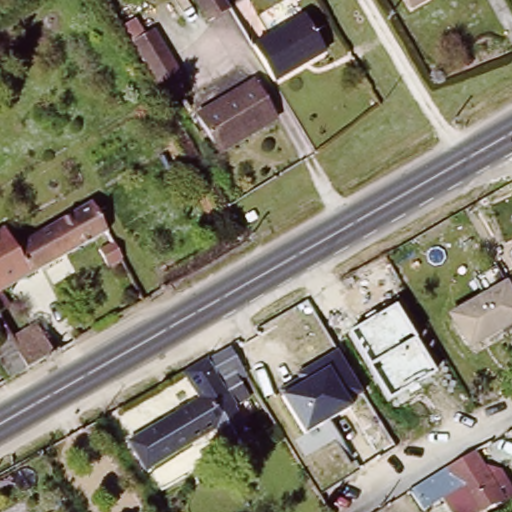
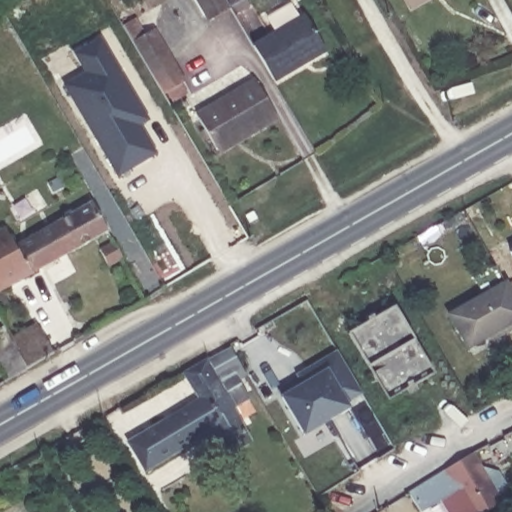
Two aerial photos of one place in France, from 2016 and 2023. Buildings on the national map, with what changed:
unchanged [(207,25),(191,0),(220,0),(228,13),(207,25)]
unchanged [(400,0),(428,0),(407,12),(400,0)]
unchanged [(322,54),(271,84),(250,49),(302,19),(322,54)]
unchanged [(117,30),(132,20),(140,32),(152,28),(183,81),(160,99),(117,30)]
new [(101,36),(149,120),(140,127),(157,154),(118,176),(64,84),(84,72),(74,53),(101,36)]
unchanged [(210,151),(191,119),(249,85),(272,122),(233,145),(213,157),(210,151)]
unchanged [(0,290),(0,243),(5,251),(82,208),(97,236),(0,290)]
unchanged [(122,258),(107,266),(98,250),(113,242),(122,258)]
unchanged [(507,249),(512,245),(512,257),(507,249)]
unchanged [(512,306),(512,317),(463,346),(445,314),(499,283),(512,306)]
unchanged [(395,306),(435,374),(388,400),(349,333),(395,306)]
unchanged [(48,353),(22,368),(5,379),(0,371),(0,330),(6,340),(32,325),(48,353)]
unchanged [(236,371),(227,376),(242,402),(227,411),(254,457),(241,464),(234,453),(224,458),(210,435),(141,475),(123,445),(193,402),(178,376),(180,375),(181,377),(227,351),(228,353),(236,371)]
unchanged [(347,401),(350,407),(305,434),(280,395),(300,382),(295,375),(337,353),(361,394),(347,401)]
unchanged [(505,437),(510,449),(495,457),(489,445),(505,437)]
unchanged [(468,458),(478,477),(500,480),(512,503),(512,507),(503,512),(460,512),(448,490),(415,511),(405,496),(467,457),(468,458)]
unchanged [(243,479),(248,487),(240,491),(235,483),(243,479)]

